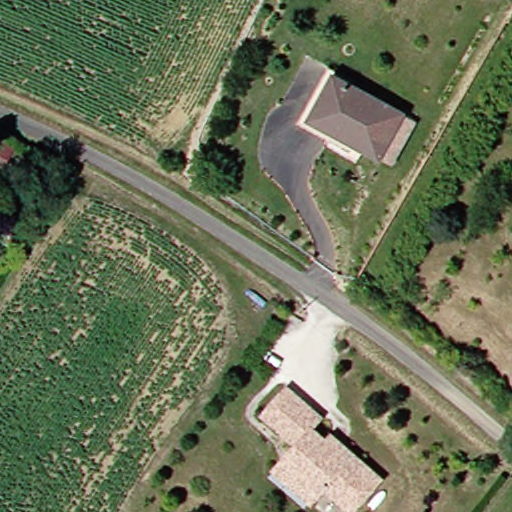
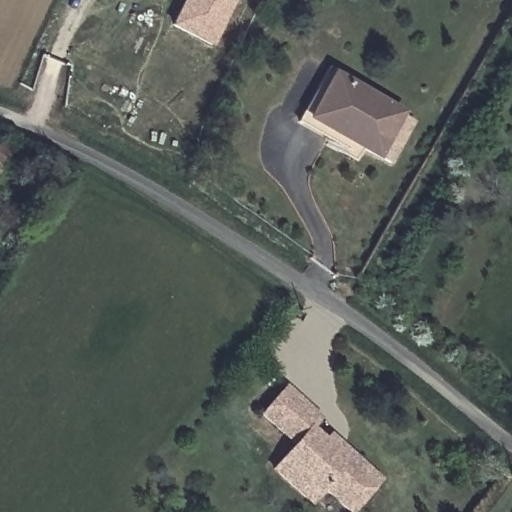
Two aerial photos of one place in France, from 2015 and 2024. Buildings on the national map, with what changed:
new [(172,27),(185,0),(230,0),(209,45),(172,27)]
unchanged [(349,149),(294,119),(321,72),(331,77),(307,116),(353,141),(349,149)]
unchanged [(386,159),(373,151),(353,141),(307,116),(331,77),(394,112),(407,120),(386,159)]
unchanged [(0,169),(0,135),(15,141),(1,170),(0,169)]
unchanged [(283,386),(316,411),(305,424),(323,437),(329,429),(343,440),(383,470),(355,508),(324,485),(310,503),(298,493),(299,465),(284,455),(294,442),(261,416),(283,386)]
unchanged [(303,512),(302,512),(263,483),(284,455),(299,465),(298,493),(310,503),(303,512)]

